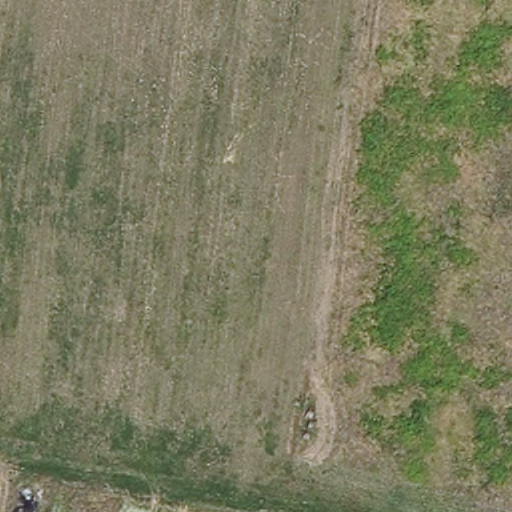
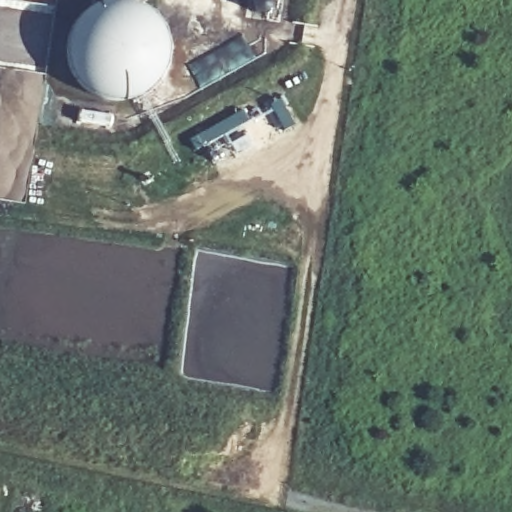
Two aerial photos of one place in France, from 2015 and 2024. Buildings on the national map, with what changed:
new [(172,48),(171,58),(167,67),(162,77),(154,86),(150,89),(137,95),(126,97),(116,97),(105,95),(95,90),(88,84),(80,75),(76,70),(73,62),(71,51),(72,39),(74,30),(78,21),(82,15),(87,9),(94,5),(102,0),(141,0),(149,4),(160,14),(165,22),(168,27),(172,40),(172,48)]
demolished [(119,512),(47,512),(50,499),(119,512)]

